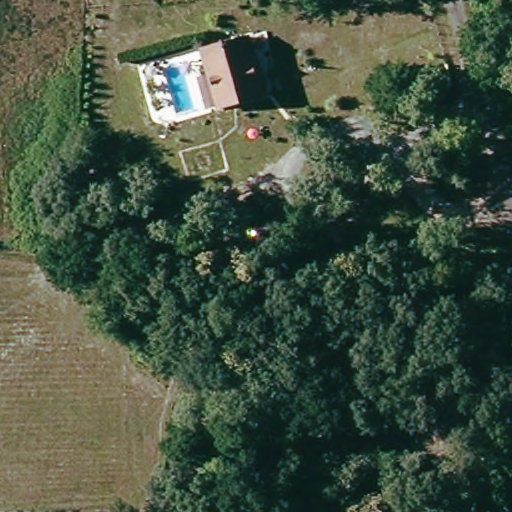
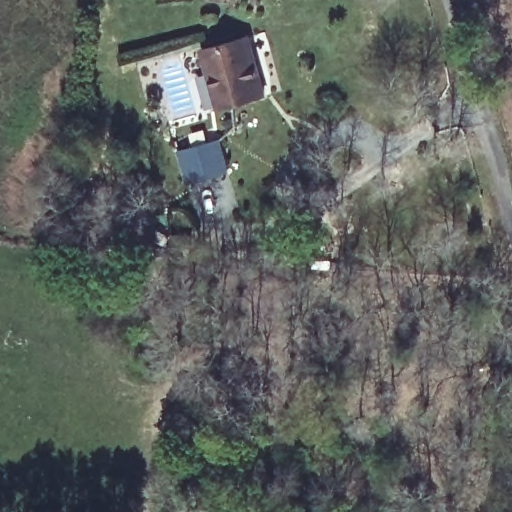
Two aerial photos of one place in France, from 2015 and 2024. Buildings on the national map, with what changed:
unchanged [(247,64),(254,62),(263,97),(216,109),(200,44),(240,33),(247,64)]
new [(217,144),(225,173),(185,182),(179,154),(217,144)]

